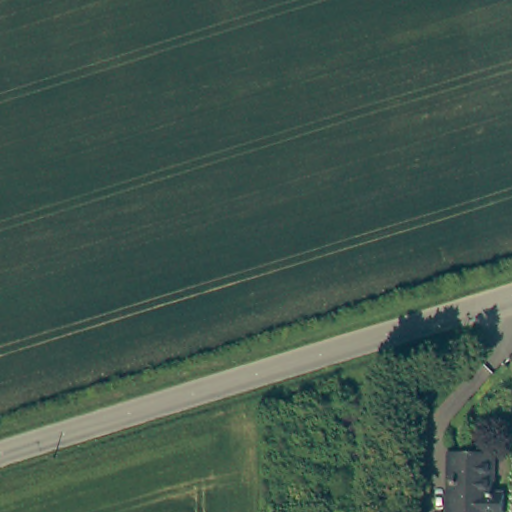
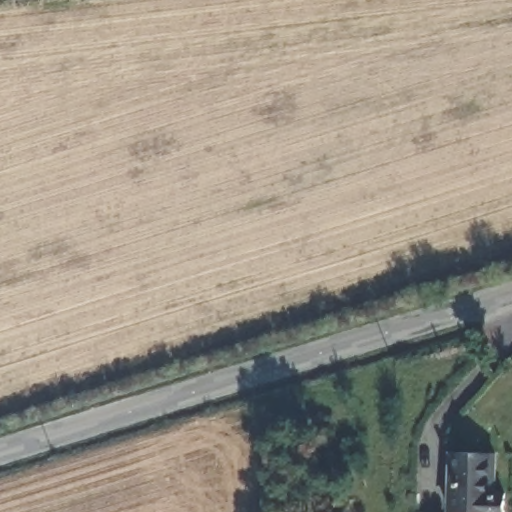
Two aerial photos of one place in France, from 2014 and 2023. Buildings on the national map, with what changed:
unchanged [(495,498),(505,497),(505,512),(451,512),(451,456),(495,458),(495,498)]

